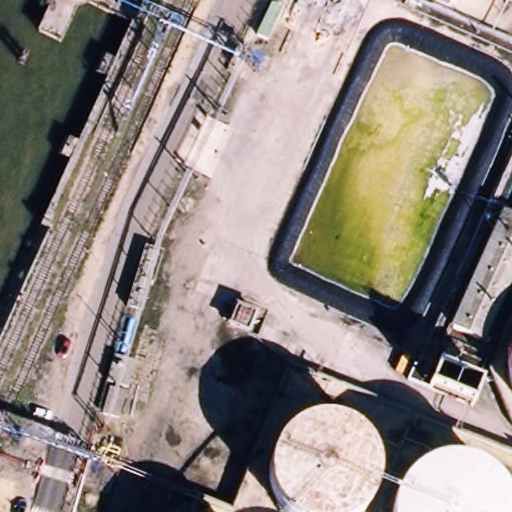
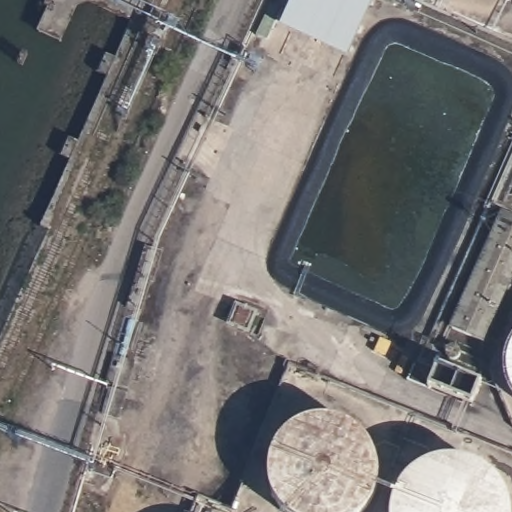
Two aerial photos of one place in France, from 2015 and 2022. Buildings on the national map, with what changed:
new [(293,0),(374,0),(348,54),(282,26),(293,0)]
demolished [(496,179),(512,142),(512,181),(510,185),(496,179)]
unchanged [(453,333),(504,219),(512,222),(512,283),(484,346),(453,333)]
unchanged [(162,251),(154,282),(150,280),(142,308),(127,304),(132,287),(144,246),(162,251)]
unchanged [(230,323),(237,304),(257,312),(248,332),(230,323)]
unchanged [(462,353),(462,354),(462,355),(462,356),(461,356),(461,357),(460,357),(460,358),(459,359),(459,360),(458,360),(457,360),(456,360),(455,360),(454,360),(453,360),(452,360),(451,360),(450,360),(450,359),(450,358),(449,358),(449,357),(448,357),(447,357),(447,356),(447,355),(447,354),(447,353),(447,352),(447,351),(447,350),(447,349),(447,348),(448,348),(449,347),(450,346),(450,345),(451,345),(452,345),(453,345),(454,345),(455,345),(456,345),(457,345),(458,345),(458,346),(459,346),(460,346),(460,347),(460,348),(461,348),(461,349),(462,349),(462,350),(462,351),(462,352),(462,353)]
unchanged [(482,363),(482,364),(482,365),(482,366),(481,366),(481,367),(480,367),(480,368),(479,368),(479,369),(478,370),(477,370),(476,370),(475,370),(474,370),(473,370),(472,370),(471,370),(470,370),(469,370),(469,369),(468,369),(468,368),(467,368),(467,367),(466,367),(466,366),(465,366),(465,365),(465,364),(465,363),(465,362),(465,361),(465,360),(465,359),(465,358),(465,357),(466,357),(466,356),(467,356),(467,355),(468,355),(469,355),(469,354),(470,354),(470,353),(471,353),(472,353),(473,353),(475,353),(476,353),(477,353),(477,354),(478,354),(479,355),(480,355),(480,356),(481,356),(481,357),(482,357),(482,358),(482,359),(482,360),(482,361),(482,362),(482,363)]
unchanged [(137,361),(128,387),(105,382),(114,354),(137,361)]
unchanged [(430,388),(440,365),(482,383),(473,406),(430,388)]
unchanged [(102,414),(112,386),(127,391),(120,418),(102,414)]

